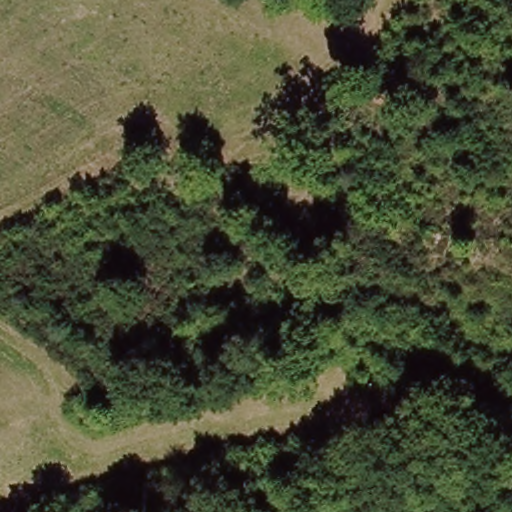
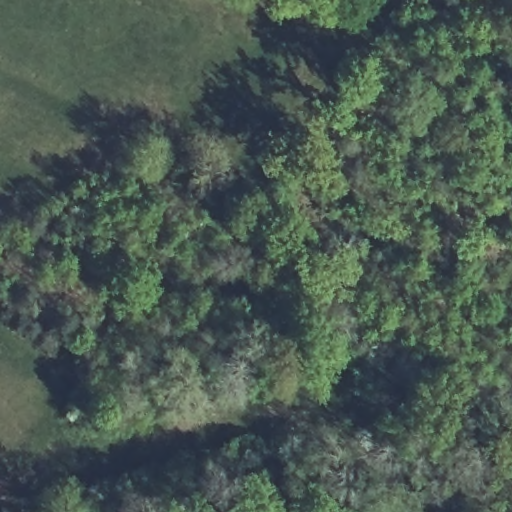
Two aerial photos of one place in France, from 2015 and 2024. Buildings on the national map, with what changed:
unchanged [(105,426),(87,417),(96,397),(115,405),(105,426)]

